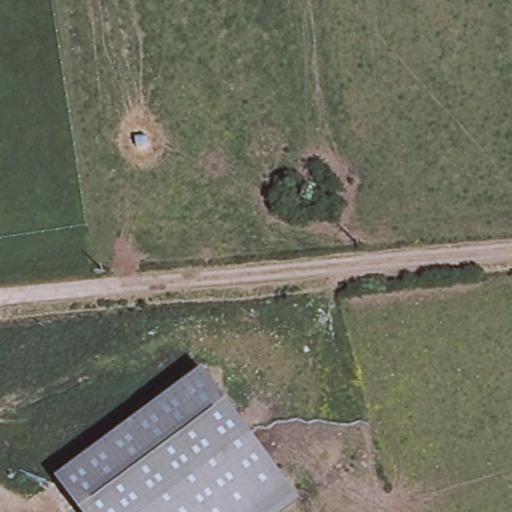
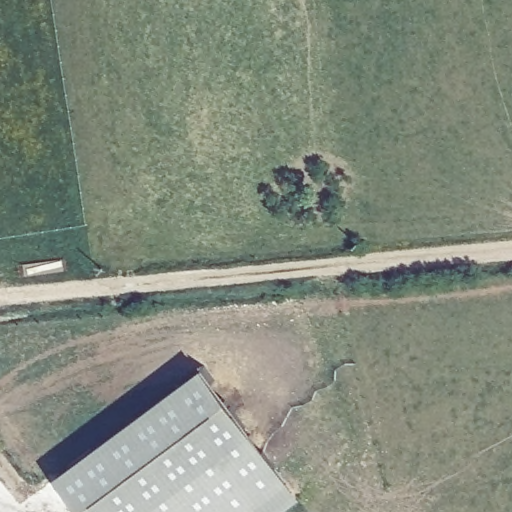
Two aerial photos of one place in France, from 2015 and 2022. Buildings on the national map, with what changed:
unchanged [(213,379),(299,491),(271,512),(87,512),(68,487),(182,402),(213,379)]

